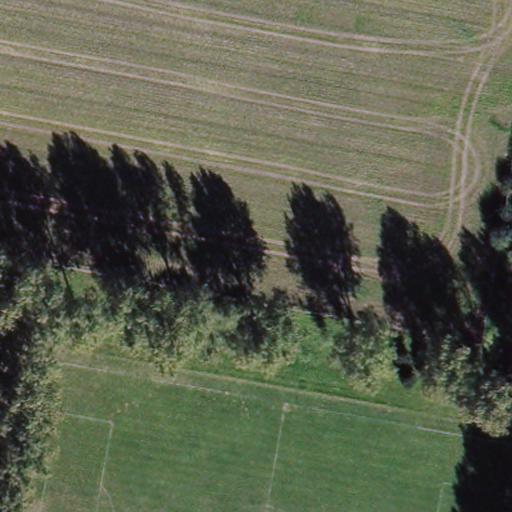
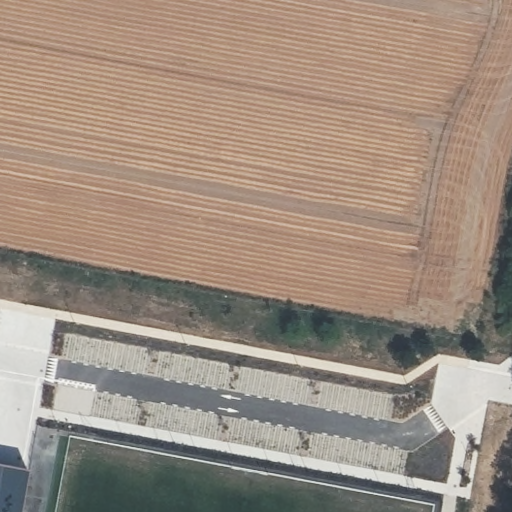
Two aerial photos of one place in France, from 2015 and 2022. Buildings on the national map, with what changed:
new [(21,512),(0,512),(0,468),(28,473),(21,512)]

